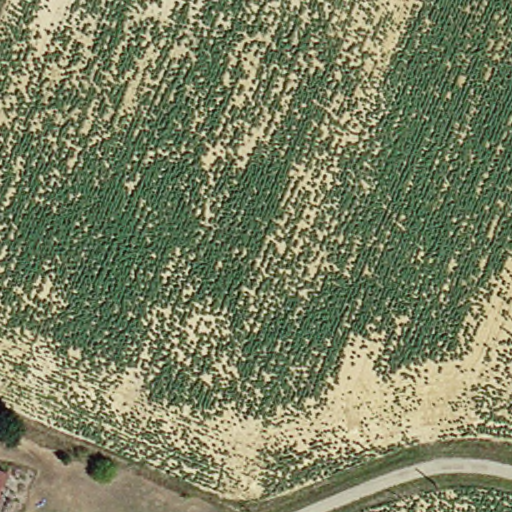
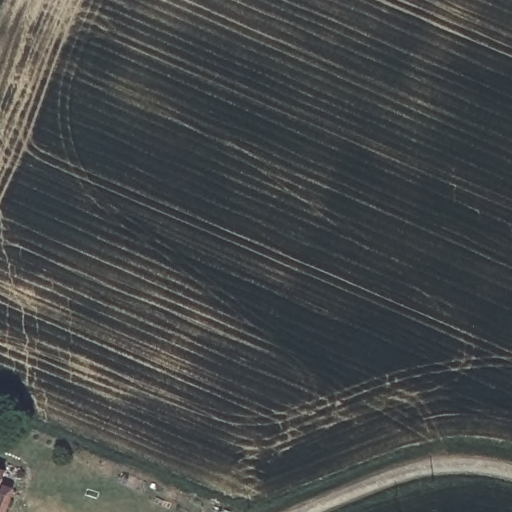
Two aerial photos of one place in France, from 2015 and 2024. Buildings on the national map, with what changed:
unchanged [(15,467),(4,493),(12,497),(5,512),(0,512),(0,462),(15,467)]

